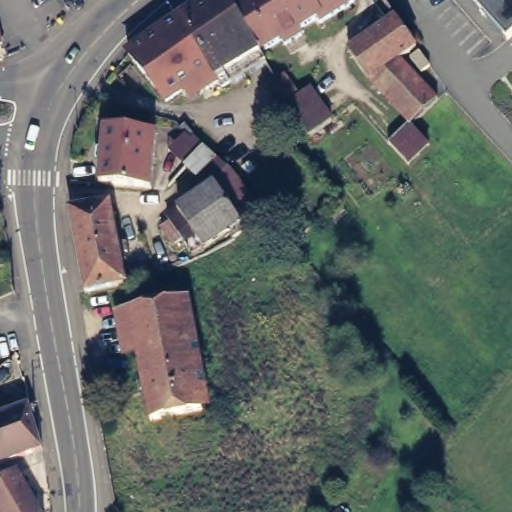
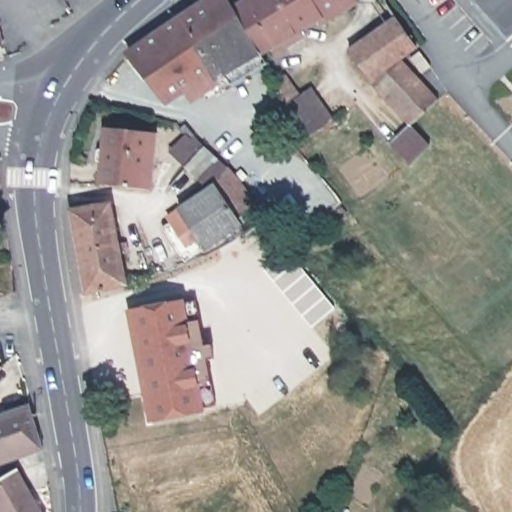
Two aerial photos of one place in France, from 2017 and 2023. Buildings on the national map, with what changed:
unchanged [(173,22),(206,0),(220,0),(226,10),(230,8),(257,55),(261,63),(217,89),(213,83),(173,22)]
unchanged [(352,0),(315,25),(311,19),(293,31),(296,37),(281,47),(277,42),(257,55),(230,8),(244,0),(352,0)]
unchanged [(472,2),(470,0),(512,0),(512,31),(505,38),(472,2)]
unchanged [(376,89),(349,51),(392,12),(418,41),(402,57),(439,98),(410,125),(376,89)]
unchanged [(130,51),(173,22),(213,83),(197,92),(190,85),(163,103),(125,55),(130,51)]
unchanged [(266,85),(271,81),(280,76),(295,95),(305,88),(329,120),(304,138),(266,85)]
unchanged [(409,164),(389,145),(410,125),(429,146),(409,164)]
unchanged [(215,251),(210,254),(195,234),(195,231),(179,207),(208,187),(186,162),(173,147),(186,129),(192,135),(196,132),(205,141),(246,182),(263,203),(262,205),(268,213),(235,234),(215,251)]
unchanged [(103,130),(152,135),(147,188),(96,183),(103,130)]
unchanged [(71,209),(112,203),(125,284),(86,291),(71,209)]
unchanged [(186,297),(208,407),(157,417),(150,388),(135,306),(186,297)]
unchanged [(36,451),(0,464),(0,417),(23,409),(36,451)]
unchanged [(0,483),(18,472),(42,512),(0,512),(0,483)]

